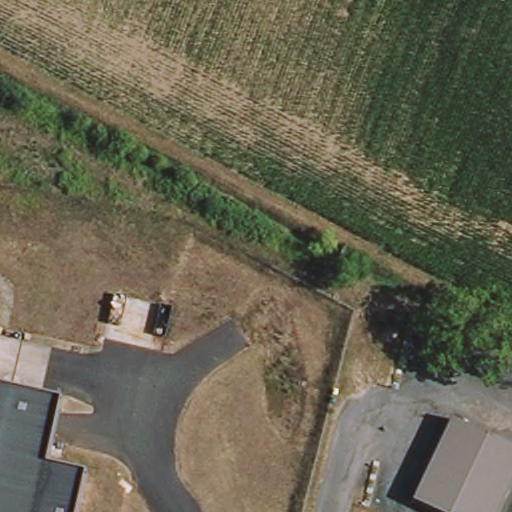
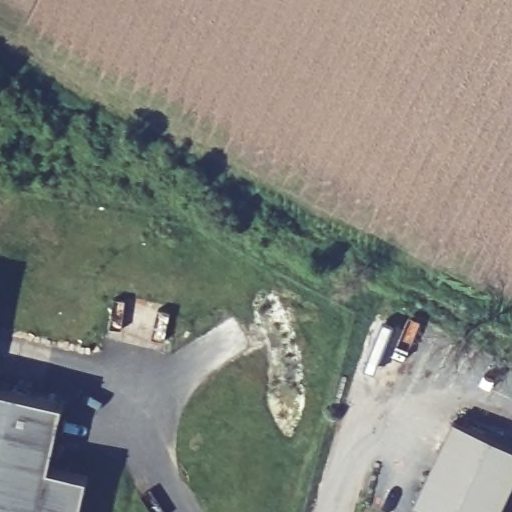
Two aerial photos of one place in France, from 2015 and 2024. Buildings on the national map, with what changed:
unchanged [(46,467),(85,476),(78,512),(0,512),(0,390),(60,403),(46,467)]
unchanged [(512,505),(509,512),(424,512),(422,511),(460,427),(512,451),(512,505)]

